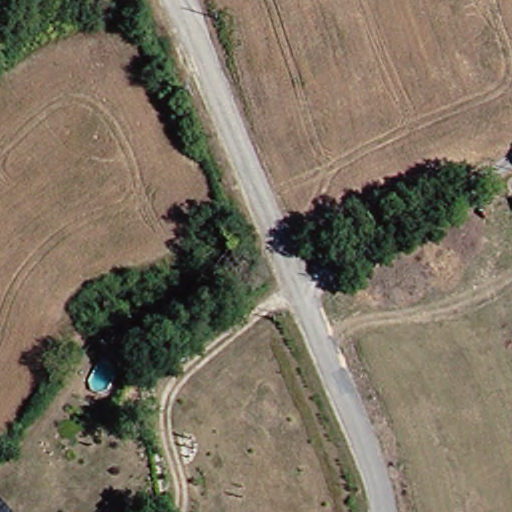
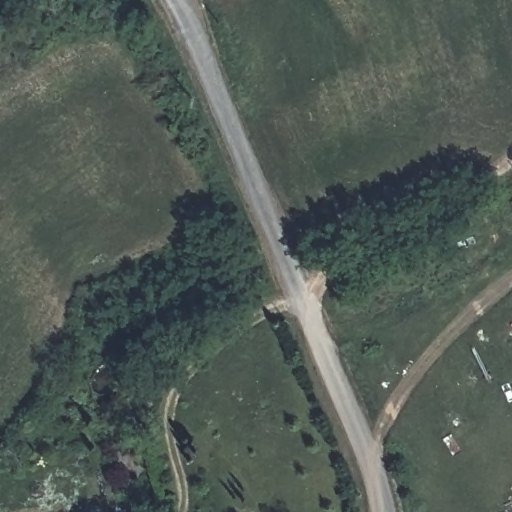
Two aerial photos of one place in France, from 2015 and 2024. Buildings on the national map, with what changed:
[]

